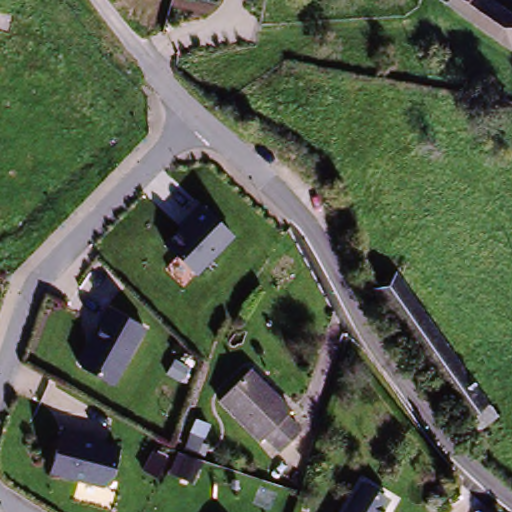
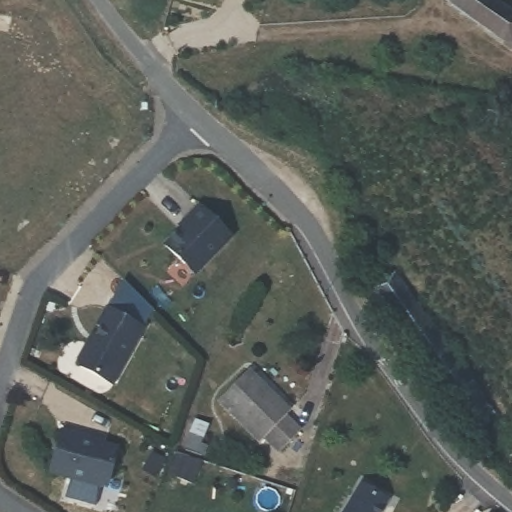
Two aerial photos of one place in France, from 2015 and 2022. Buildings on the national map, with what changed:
unchanged [(465,0),(487,0),(512,17),(512,50),(457,12),(465,0)]
unchanged [(233,239),(200,277),(162,245),(197,205),(233,239)]
unchanged [(509,411),(490,430),(367,300),(385,282),(509,411)]
unchanged [(144,331),(115,385),(73,363),(102,307),(144,331)]
unchanged [(295,448),(270,432),(265,441),(218,413),(242,373),(288,399),(284,406),(309,420),(295,448)]
unchanged [(120,449),(107,492),(48,475),(59,429),(120,449)]
unchanged [(385,510),(384,512),(347,512),(360,493),(385,510)]

